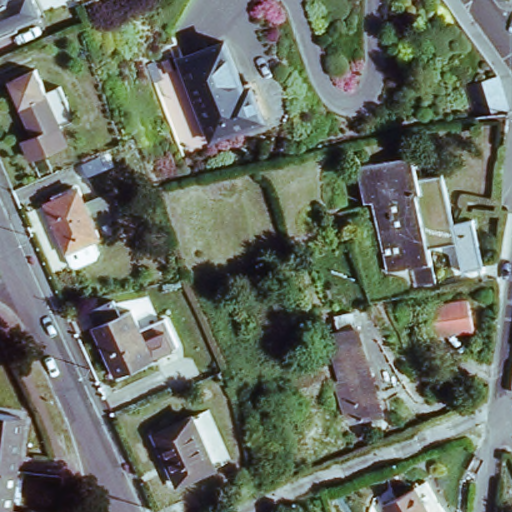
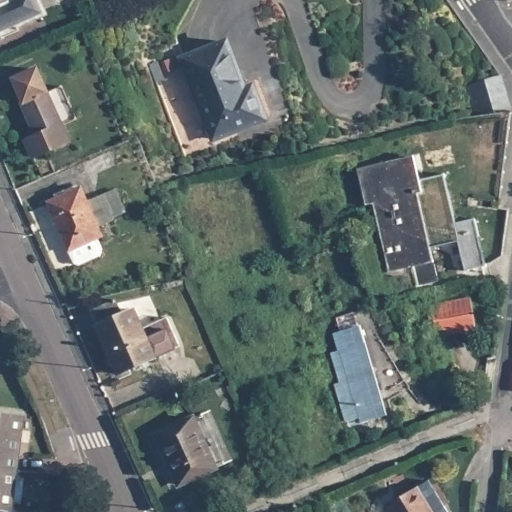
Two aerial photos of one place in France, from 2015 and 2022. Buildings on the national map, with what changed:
unchanged [(15,0),(36,0),(42,13),(0,31),(0,0),(11,0),(12,2),(15,0)]
unchanged [(223,43),(242,90),(250,87),(262,120),(210,140),(178,60),(223,43)]
unchanged [(157,64),(163,80),(157,83),(150,66),(157,64)]
unchanged [(497,71),(502,77),(502,78),(512,111),(478,116),(467,79),(497,71)]
unchanged [(53,88),(68,120),(52,127),(60,143),(26,159),(18,142),(29,137),(15,105),(53,88)]
unchanged [(410,159),(415,183),(445,176),(457,226),(477,221),(487,267),(467,273),(460,242),(430,249),(439,282),(417,288),(412,268),(388,274),(373,205),(365,207),(357,171),(410,159)]
unchanged [(72,179),(78,193),(107,181),(117,203),(105,209),(105,210),(89,218),(93,227),(87,230),(92,243),(90,248),(72,256),(67,255),(39,193),(72,179)]
unchanged [(117,301),(123,317),(135,311),(157,359),(120,375),(92,313),(117,301)]
unchanged [(467,301),(472,330),(432,336),(427,307),(467,301)]
unchanged [(352,330),(377,416),(352,423),(351,419),(338,422),(327,385),(333,384),(323,354),(332,352),(327,337),(352,330)]
unchanged [(385,386),(362,341),(369,336),(396,379),(385,386)]
unchanged [(189,414),(212,464),(177,481),(153,431),(189,414)]
unchanged [(19,474),(0,471),(0,416),(27,420),(19,474)]
unchanged [(14,512),(0,512),(0,471),(19,474),(14,512)]
unchanged [(448,512),(388,512),(385,506),(428,480),(448,512)]

